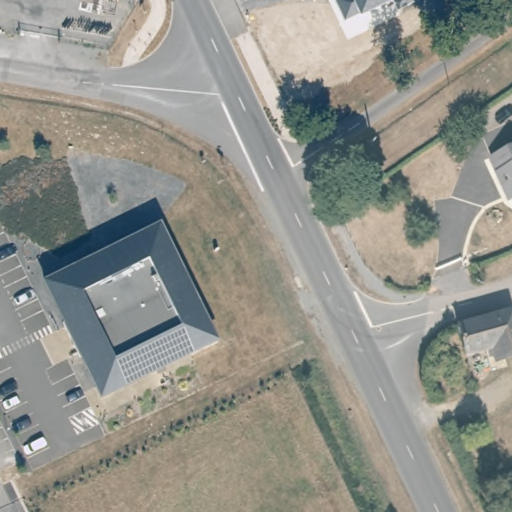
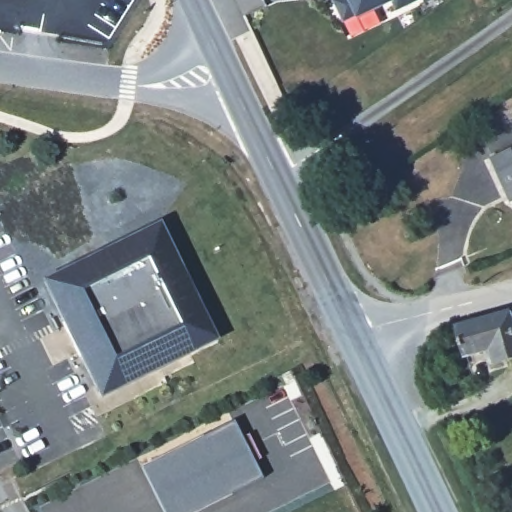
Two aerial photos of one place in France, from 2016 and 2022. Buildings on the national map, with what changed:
unchanged [(342,20),(333,0),(394,0),(360,16),(342,20)]
unchanged [(396,0),(413,0),(397,9),(396,0)]
unchanged [(512,141),(512,187),(510,187),(491,151),(512,141)]
unchanged [(216,340),(98,396),(40,280),(157,221),(216,340)]
unchanged [(492,356),(488,344),(465,351),(455,321),(462,318),(504,307),(512,305),(512,350),(492,356)]
new [(233,421),(263,479),(197,512),(163,512),(141,467),(233,421)]

